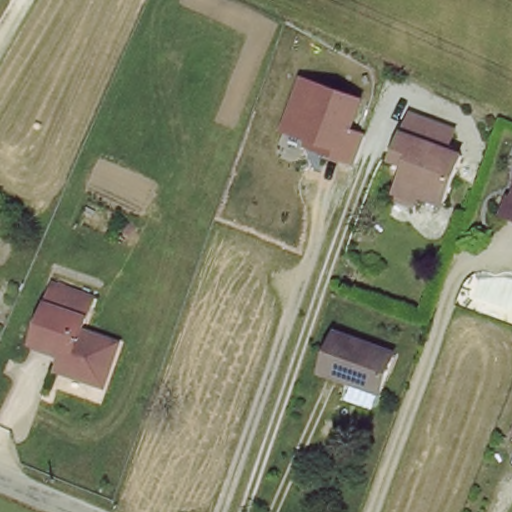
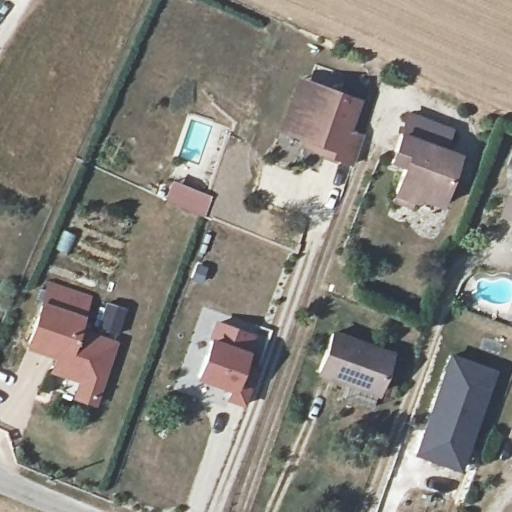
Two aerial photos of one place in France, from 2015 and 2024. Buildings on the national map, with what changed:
unchanged [(362,99),(351,130),(362,134),(350,164),(298,146),(301,139),(279,131),(298,76),(362,99)]
unchanged [(395,197),(396,191),(407,160),(393,154),(395,148),(408,110),(449,125),(442,145),(457,150),(437,202),(419,195),(418,199),(416,205),(395,197)]
unchanged [(502,213),(510,194),(512,195),(512,216),(502,213)]
unchanged [(88,378),(66,370),(57,367),(62,350),(35,340),(56,281),(95,293),(86,328),(121,340),(109,372),(105,383),(88,378)]
new [(255,335),(250,351),(256,353),(251,366),(260,370),(246,408),(230,402),(233,394),(202,382),(222,322),(255,335)]
unchanged [(348,394),(354,380),(323,368),(340,328),(396,350),(380,390),(375,405),(348,394)]
new [(450,353),(497,370),(460,473),(413,455),(450,353)]

